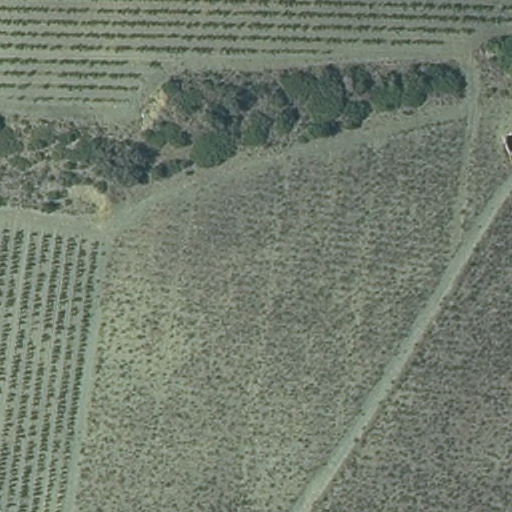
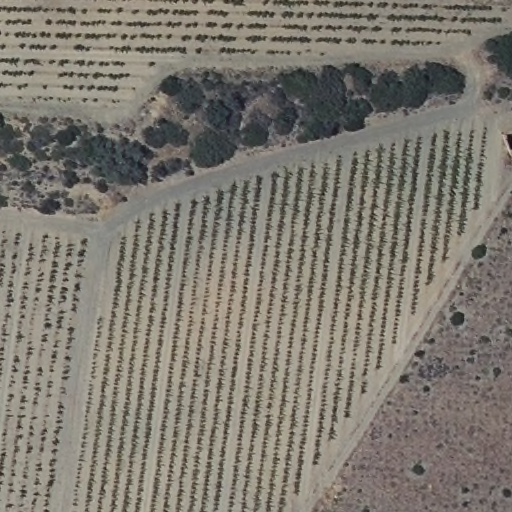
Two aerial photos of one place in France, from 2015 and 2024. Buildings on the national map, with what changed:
unchanged [(512,125),(512,148),(506,129),(512,125)]

